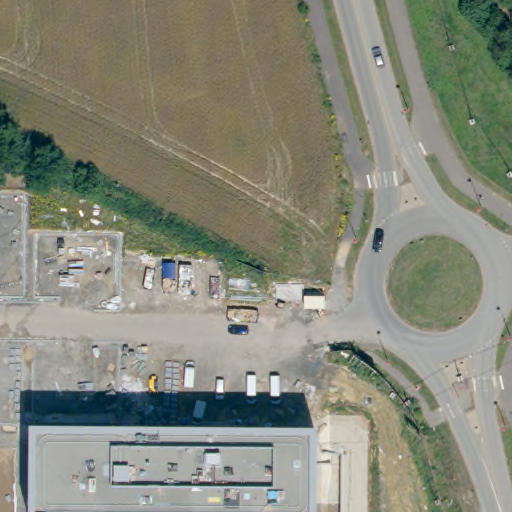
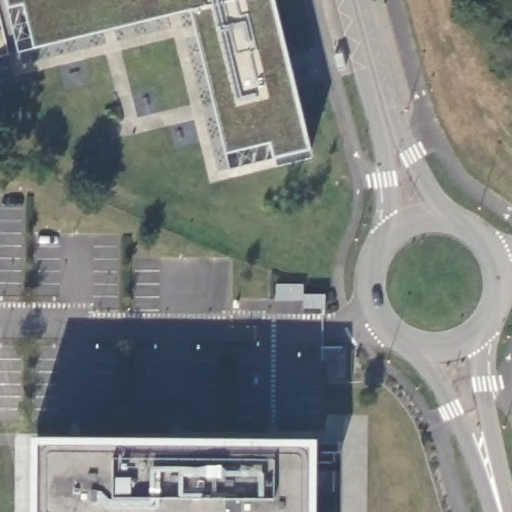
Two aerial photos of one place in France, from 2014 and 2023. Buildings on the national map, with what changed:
new [(310,150),(274,157),(232,169),(227,154),(191,10),(35,46),(24,4),(8,7),(6,0),(274,0),(310,150)]
unchanged [(317,439),(317,512),(34,512),(34,435),(317,439)]

